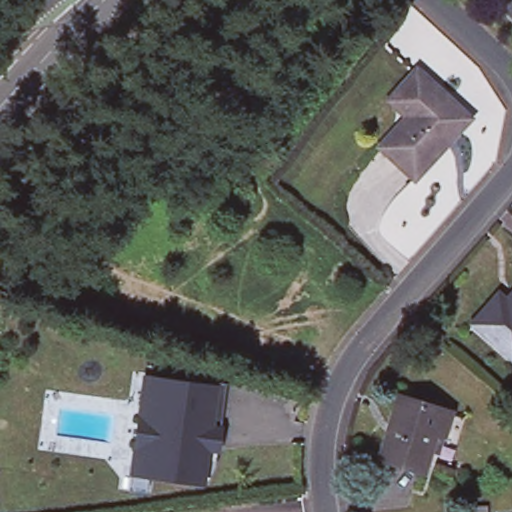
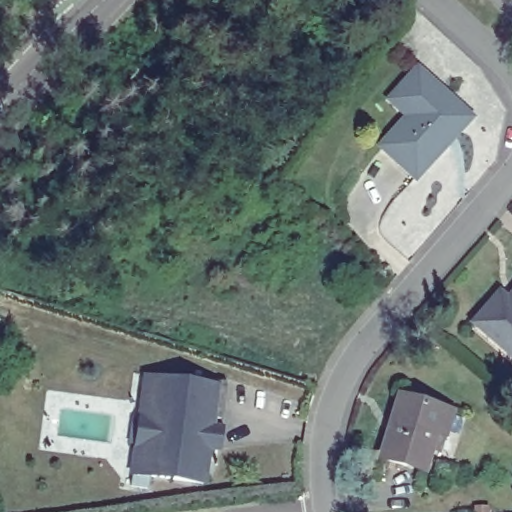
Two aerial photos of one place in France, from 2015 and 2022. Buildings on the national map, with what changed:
unchanged [(475,125),(417,180),(385,147),(410,123),(393,105),(408,92),(427,74),(475,125)]
unchanged [(475,322),(500,294),(507,299),(512,293),(512,353),(475,322)]
unchanged [(220,455),(211,453),(205,452),(200,486),(175,483),(176,479),(172,478),(172,483),(162,482),(162,477),(159,477),(158,481),(153,480),(151,494),(133,492),(138,452),(147,382),(154,382),(196,388),(197,383),(230,387),(225,424),(215,422),(214,431),(223,432),(220,455)]
unchanged [(450,413),(441,440),(432,437),(420,470),(380,456),(400,396),(450,413)]

